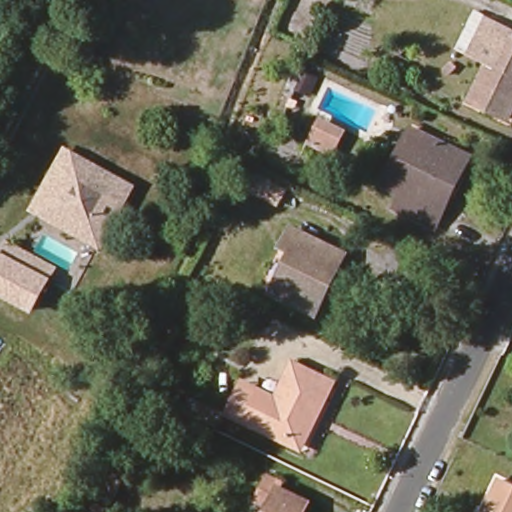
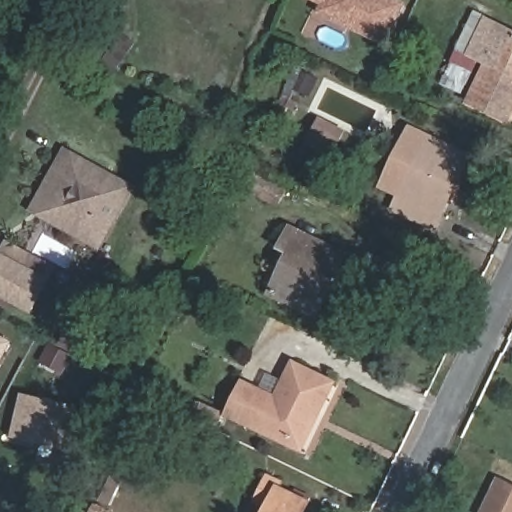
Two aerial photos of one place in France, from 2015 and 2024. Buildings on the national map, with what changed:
new [(385,46),(315,15),(317,4),(310,0),(397,0),(405,4),(385,46)]
unchanged [(508,126),(474,108),(493,67),(475,57),(493,23),(511,31),(512,32),(512,117),(508,126)]
unchanged [(345,131),(332,156),(308,146),(319,119),(345,131)]
unchanged [(376,201),(412,129),(428,138),(393,209),(376,201)]
unchanged [(462,156),(471,161),(458,185),(436,231),(393,209),(428,138),(462,156)]
unchanged [(85,243),(42,223),(34,219),(65,158),(74,162),(130,192),(112,231),(102,251),(85,243)]
new [(253,174),(285,190),(278,205),(245,188),(253,174)]
unchanged [(309,312),(275,294),(295,257),(285,252),(295,233),(343,260),(330,286),(315,315),(309,312)]
unchanged [(0,295),(0,263),(42,284),(31,310),(0,295)]
new [(0,354),(0,340),(6,344),(0,354)]
unchanged [(276,400),(291,365),(334,384),(301,452),(231,419),(242,383),(276,400)]
new [(20,396),(74,409),(65,448),(11,436),(20,396)]
unchanged [(106,512),(95,512),(112,474),(121,479),(106,512)]
unchanged [(271,509),(257,502),(268,477),(284,483),(280,490),(310,506),(306,512),(269,512),(271,509)]
unchanged [(491,479),(512,489),(512,512),(476,512),(491,479)]

